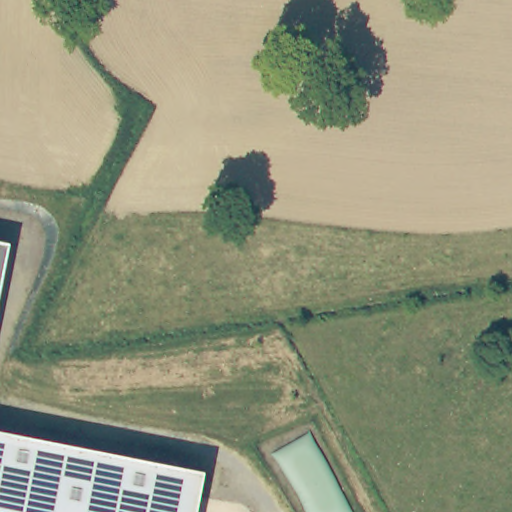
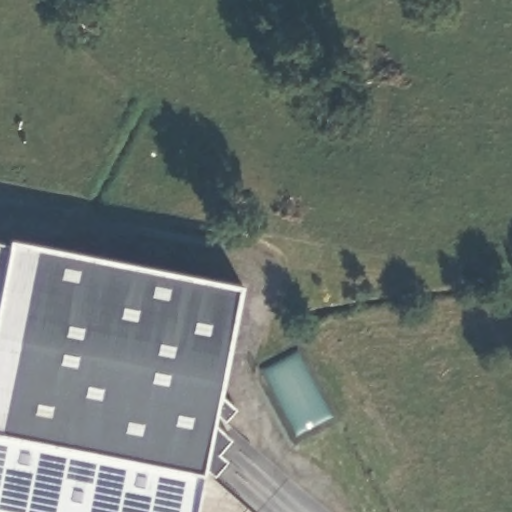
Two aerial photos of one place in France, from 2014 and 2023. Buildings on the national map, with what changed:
new [(9,244),(11,238),(241,285),(219,393),(236,408),(226,420),(215,412),(212,425),(231,440),(218,454),(226,461),(215,475),(205,466),(195,512),(0,512),(0,242),(9,244)]
demolished [(210,466),(202,512),(0,512),(0,428),(210,466)]

